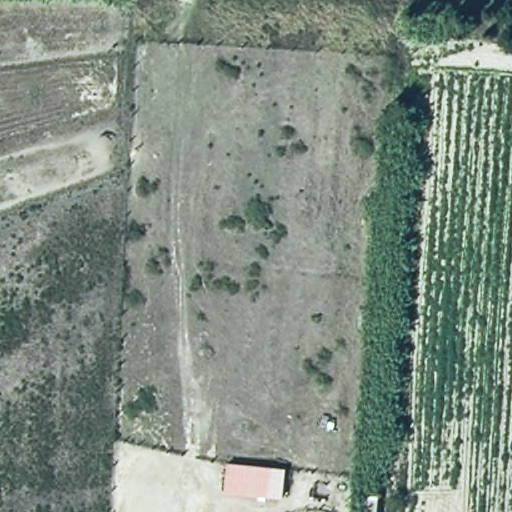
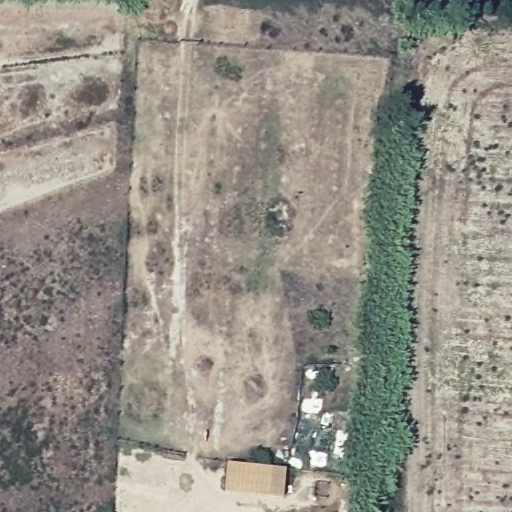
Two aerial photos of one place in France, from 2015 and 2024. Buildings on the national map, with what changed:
unchanged [(224,493),(226,464),(285,469),(283,499),(224,493)]

